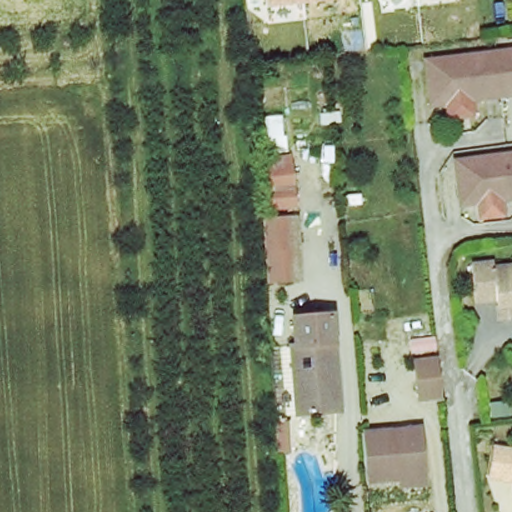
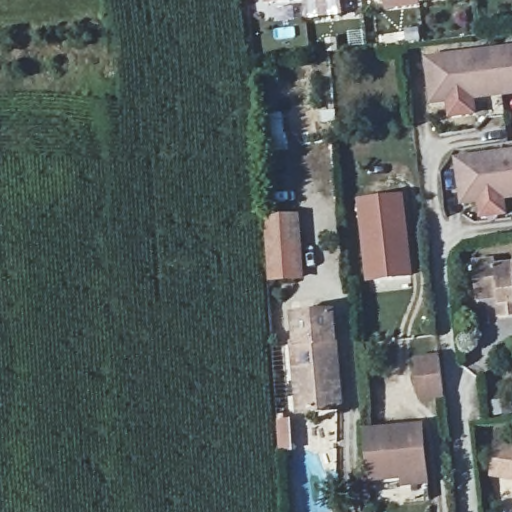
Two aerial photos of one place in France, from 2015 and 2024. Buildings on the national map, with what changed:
unchanged [(267,5),(266,0),(311,0),(267,5)]
unchanged [(512,51),(512,97),(432,108),(426,62),(512,51)]
unchanged [(512,156),(512,202),(467,207),(461,162),(512,156)]
new [(367,286),(358,200),(403,195),(413,281),(367,286)]
unchanged [(281,216),(300,215),(304,275),(286,276),(269,278),(265,217),(281,216)]
unchanged [(500,322),(499,302),(477,304),(474,265),(494,264),(495,270),(512,268),(512,321),(500,322)]
unchanged [(299,385),(292,386),(289,355),(295,352),(293,320),(330,316),(339,415),(302,418),(299,385)]
unchanged [(420,395),(416,362),(440,358),(442,375),(444,393),(420,395)]
unchanged [(415,430),(420,478),(372,481),(368,434),(415,430)]

